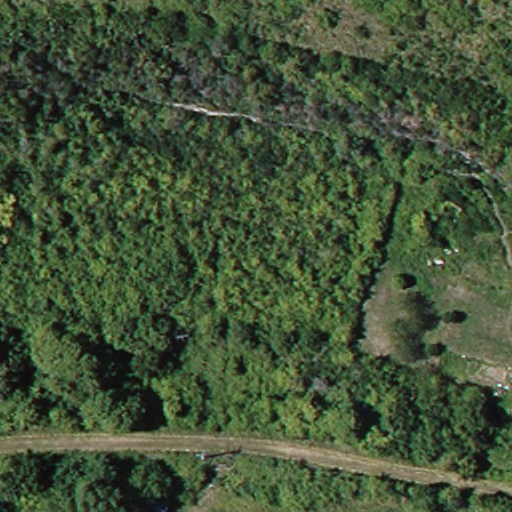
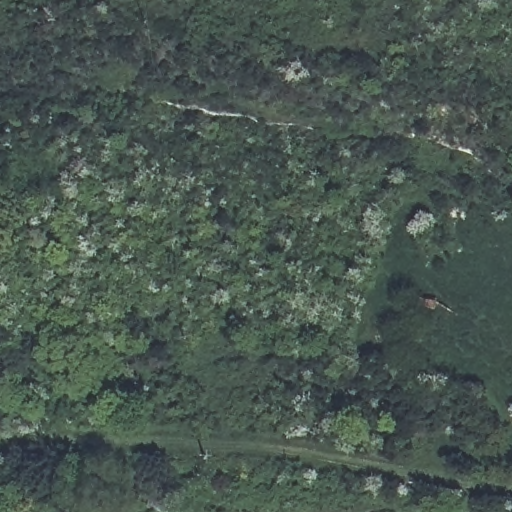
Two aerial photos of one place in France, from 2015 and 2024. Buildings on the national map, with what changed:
unchanged [(470,214),(460,231),(441,221),(451,203),(470,214)]

